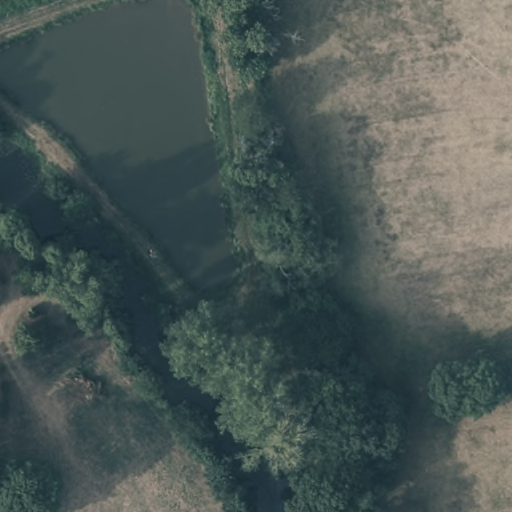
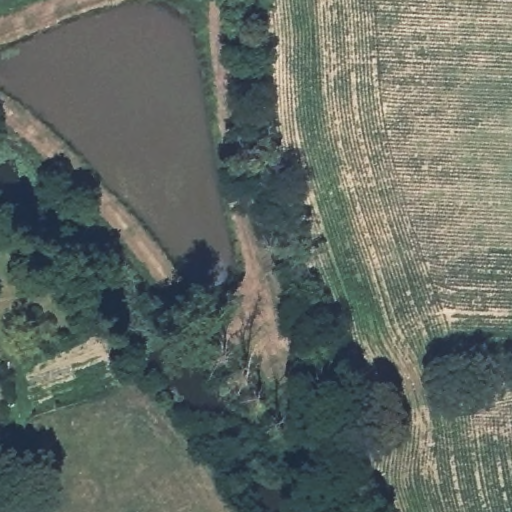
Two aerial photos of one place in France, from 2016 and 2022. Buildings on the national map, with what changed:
[]

